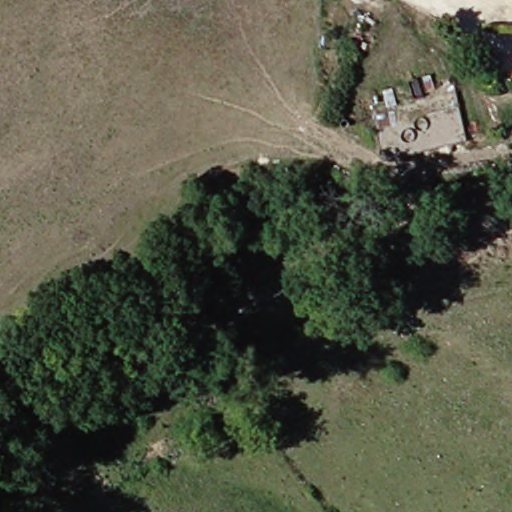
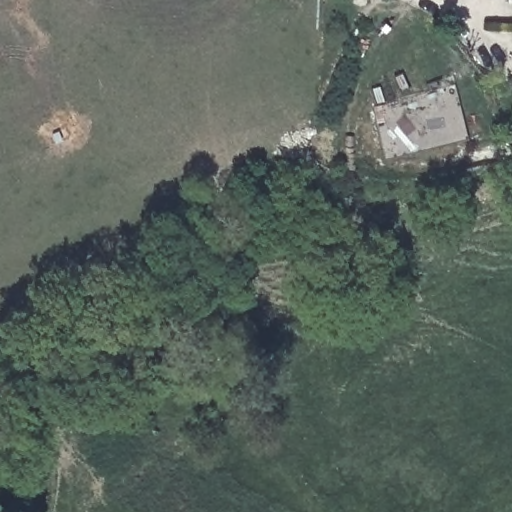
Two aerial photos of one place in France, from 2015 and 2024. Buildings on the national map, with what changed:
unchanged [(459,97),(470,137),(387,158),(378,116),(459,97)]

